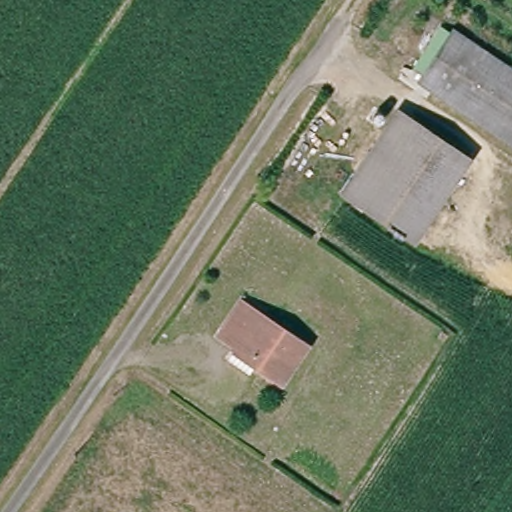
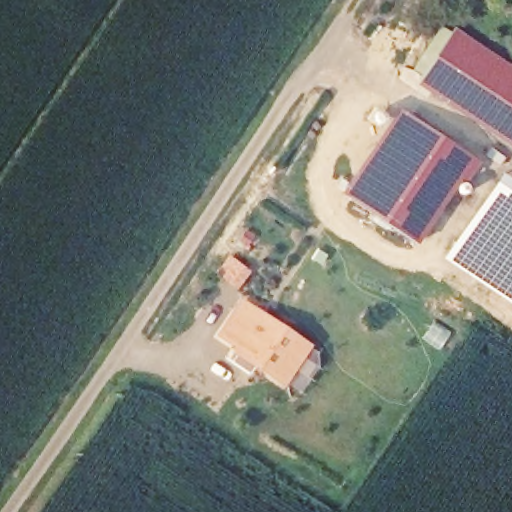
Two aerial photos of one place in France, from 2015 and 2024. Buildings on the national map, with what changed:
unchanged [(417,82),(451,30),(512,70),(512,145),(417,82)]
unchanged [(402,116),(465,158),(409,241),(346,199),(402,116)]
new [(449,265),(507,179),(512,182),(512,307),(449,265)]
unchanged [(232,355),(240,342),(224,331),(246,298),(311,341),(286,378),(259,361),(253,370),(232,355)]
new [(433,319),(452,331),(439,351),(421,338),(433,319)]

